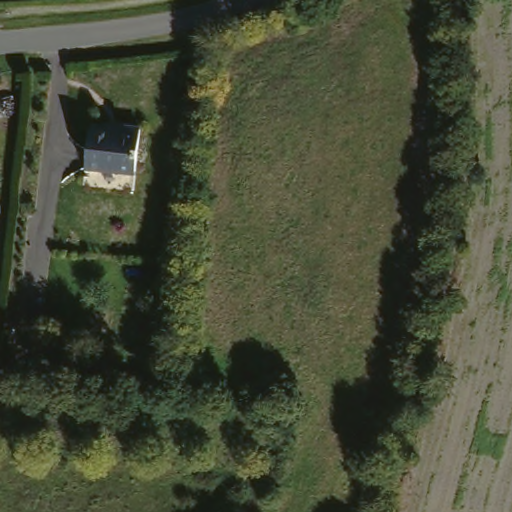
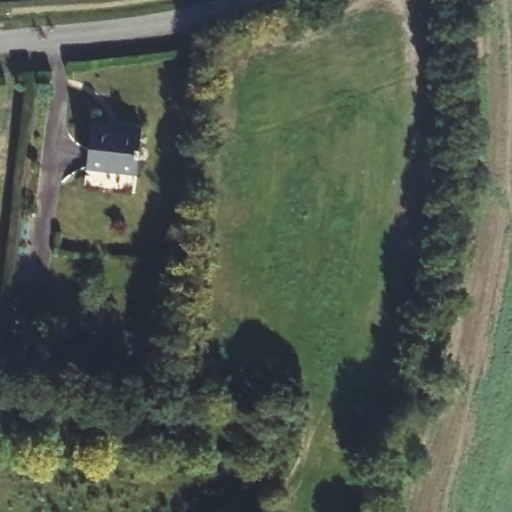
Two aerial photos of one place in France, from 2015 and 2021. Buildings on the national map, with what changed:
unchanged [(134,125),(134,121),(151,122),(151,124),(147,165),(97,161),(101,123),(134,125)]
unchanged [(30,319),(32,300),(47,302),(46,320),(30,319)]

